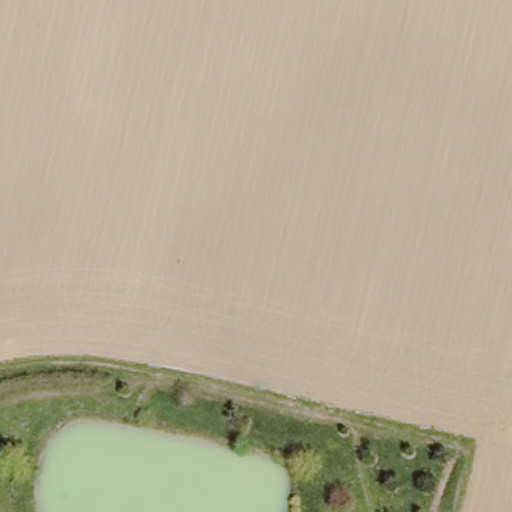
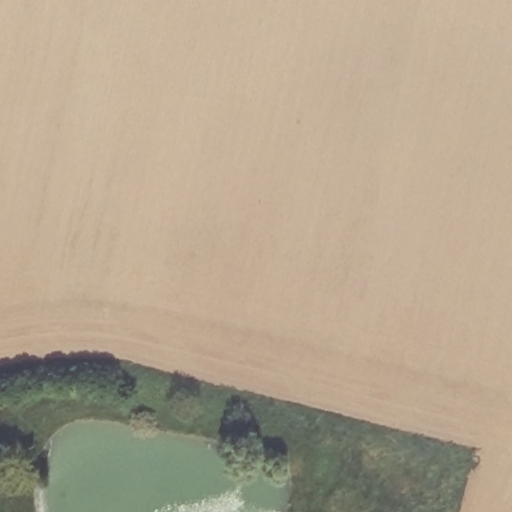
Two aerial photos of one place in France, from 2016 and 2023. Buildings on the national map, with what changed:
[]

